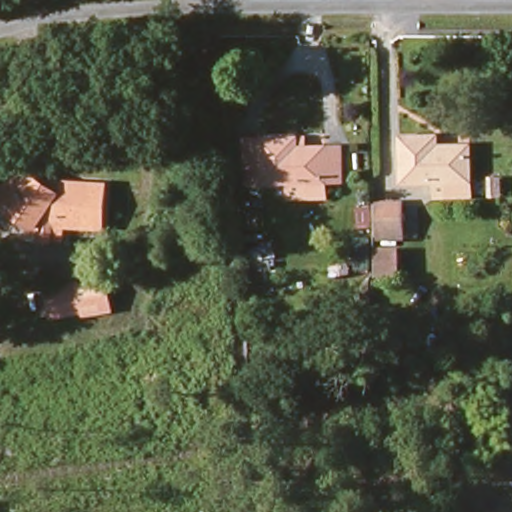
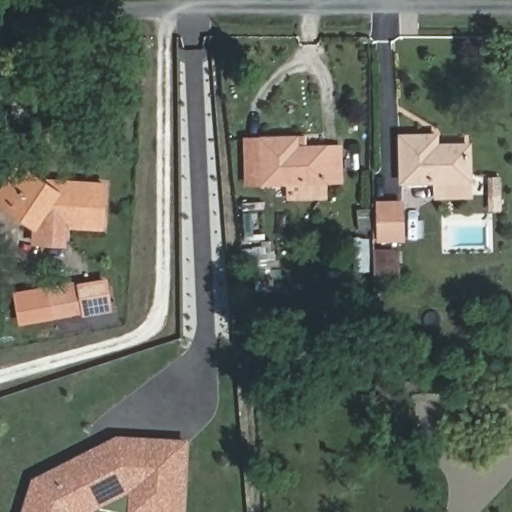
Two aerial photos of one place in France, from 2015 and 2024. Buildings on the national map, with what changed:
unchanged [(293,202),(292,181),(248,183),(247,136),(305,136),(305,146),(339,144),(343,179),(328,180),(328,201),(293,202)]
unchanged [(440,196),(440,180),(405,182),(402,136),(427,136),(429,151),(475,149),(477,178),(478,194),(440,196)]
unchanged [(54,189),(98,182),(102,223),(39,232),(0,205),(0,200),(22,170),(54,189)]
unchanged [(382,240),(379,203),(403,202),(405,238),(382,240)]
unchanged [(400,254),(401,277),(374,278),(373,254),(400,254)]
unchanged [(59,319),(60,292),(101,288),(103,312),(59,319)]
new [(184,512),(128,512),(129,493),(91,512),(20,512),(31,479),(117,436),(188,440),(184,512)]

